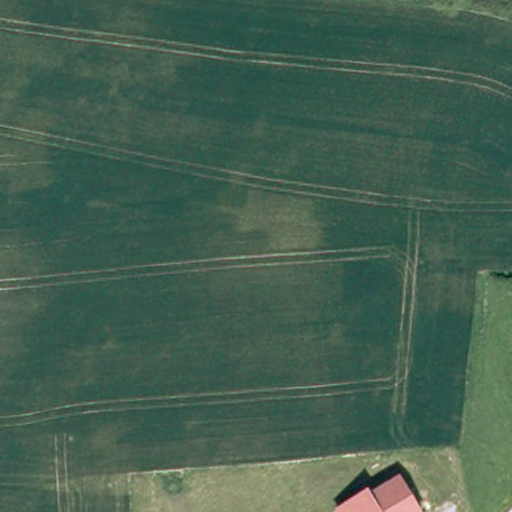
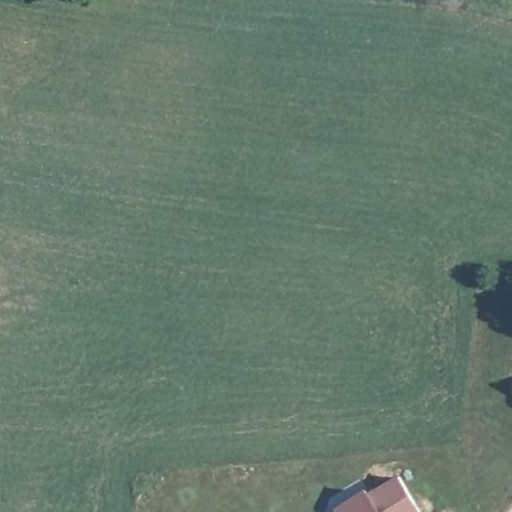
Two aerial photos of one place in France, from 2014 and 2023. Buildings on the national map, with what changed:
unchanged [(421,512),(336,512),(335,510),(367,488),(370,494),(400,476),(421,512)]

